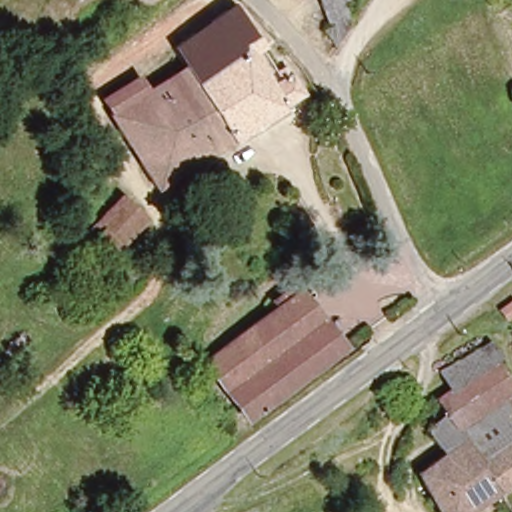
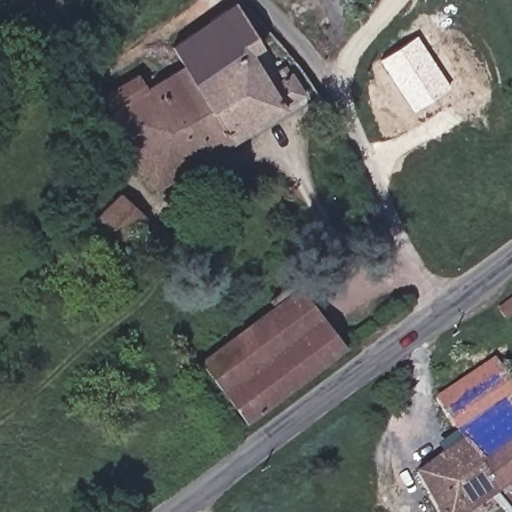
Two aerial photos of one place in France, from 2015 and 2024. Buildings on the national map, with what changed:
unchanged [(338,1),(350,26),(339,39),(322,6),(320,0),(341,0),(338,1)]
unchanged [(237,3),(261,45),(248,53),(262,75),(278,65),(281,70),(284,68),(288,76),(291,75),(302,92),(227,143),(155,191),(107,116),(112,113),(103,100),(133,81),(141,94),(183,67),(167,39),(237,3)]
new [(379,60),(417,35),(449,86),(413,111),(379,60)]
unchanged [(110,257),(84,232),(121,194),(148,218),(110,257)]
unchanged [(265,305),(290,285),(296,293),(338,349),(245,420),(203,364),(270,312),(265,305)]
unchanged [(504,316),(499,309),(512,299),(512,310),(504,316)]
unchanged [(471,469),(489,493),(465,512),(434,512),(420,466),(440,451),(421,425),(443,409),(427,387),(441,380),(434,366),(476,345),(483,357),(474,363),(499,402),(501,404),(512,420),(512,439),(474,467),(471,469)]
unchanged [(501,404),(512,397),(512,420),(501,404)]
unchanged [(474,467),(512,439),(512,476),(489,493),(471,469),(474,467)]

